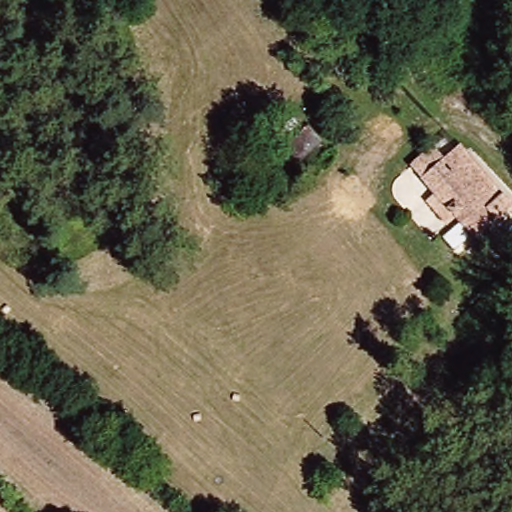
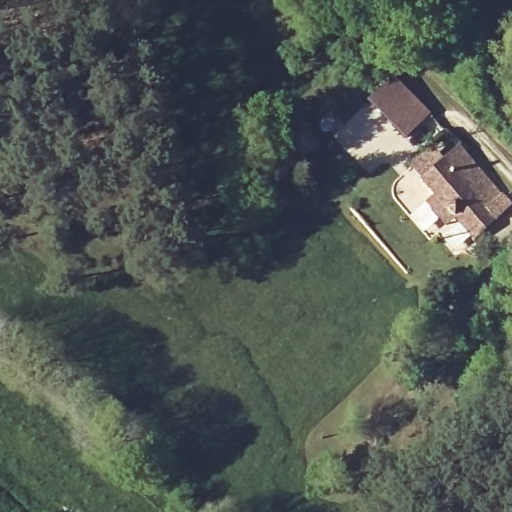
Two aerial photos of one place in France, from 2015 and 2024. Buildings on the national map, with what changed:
new [(392,75),(430,115),(405,141),(365,102),(392,75)]
unchanged [(332,142),(289,182),(275,167),(317,127),(332,142)]
unchanged [(445,131),(465,152),(455,161),(446,153),(417,179),(410,170),(407,165),(424,150),(445,131)]
unchanged [(456,224),(450,217),(440,226),(420,202),(430,195),(417,179),(446,153),(455,161),(465,152),(498,192),(500,191),(509,202),(472,240),(467,236),(457,245),(450,251),(438,239),(445,232),(456,224)]

